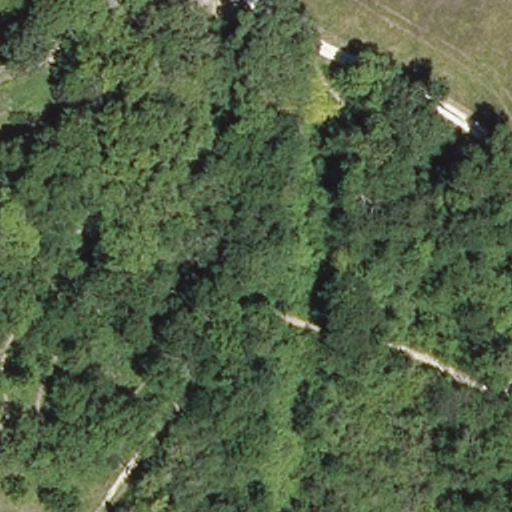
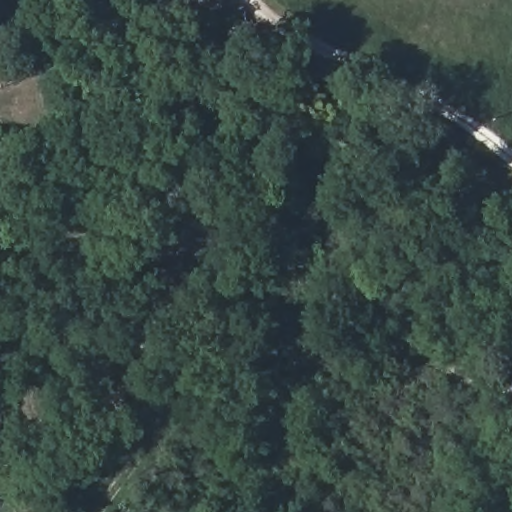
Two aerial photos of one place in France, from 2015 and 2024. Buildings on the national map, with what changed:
unchanged [(6,50),(0,50),(0,38),(6,39),(6,50)]

